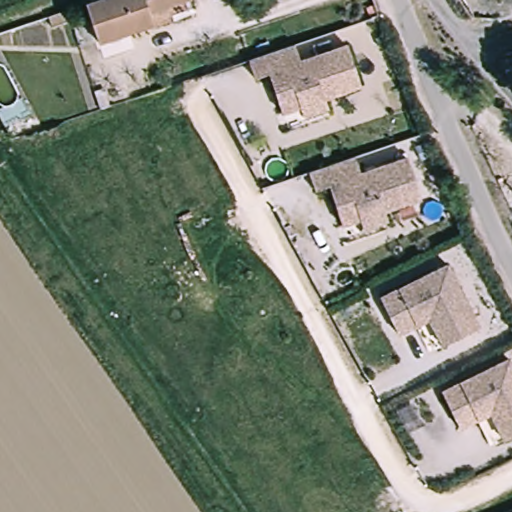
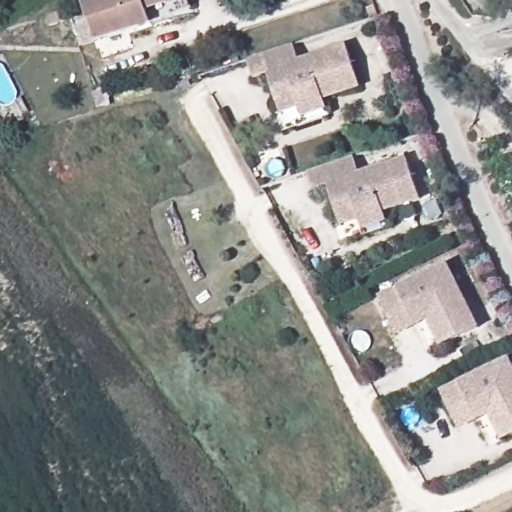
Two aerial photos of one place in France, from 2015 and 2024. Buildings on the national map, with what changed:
unchanged [(83,2),(89,0),(185,0),(188,11),(149,23),(96,40),(83,2)]
unchanged [(298,108),(295,99),(277,105),(271,87),(264,65),(250,70),(244,52),(265,45),(290,36),(295,54),(342,38),(355,79),(319,90),(323,100),(298,108)]
unchanged [(367,235),(364,225),(346,231),(340,214),(333,191),(319,196),(313,179),(335,171),(358,163),(364,180),(410,165),(424,205),(388,217),(391,226),(367,235)]
unchanged [(432,317),(402,331),(384,295),(451,262),(482,326),(457,338),(445,344),(432,317)]
unchanged [(494,411),(462,426),(445,389),(512,357),(512,358),(512,435),(507,438),(494,411)]

